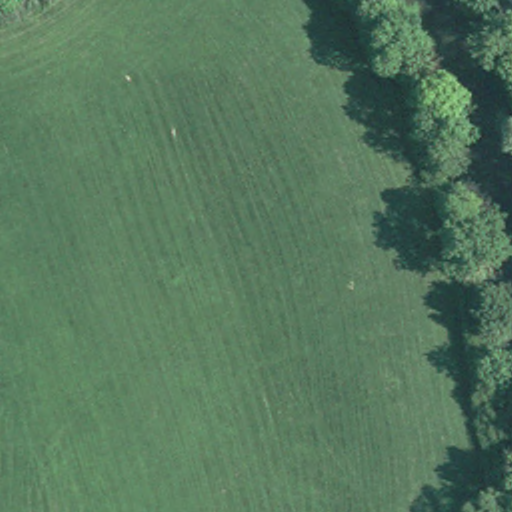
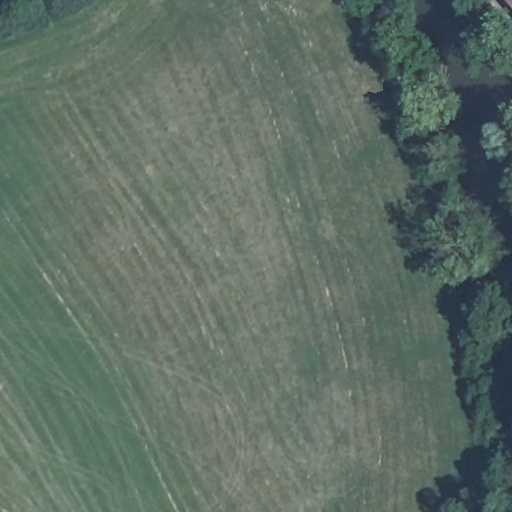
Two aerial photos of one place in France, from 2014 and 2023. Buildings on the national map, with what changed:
[]

